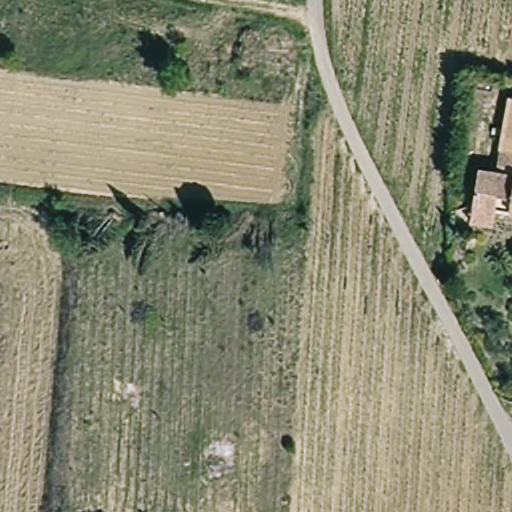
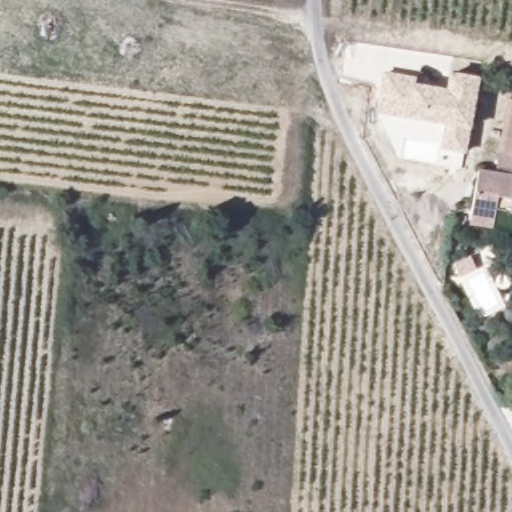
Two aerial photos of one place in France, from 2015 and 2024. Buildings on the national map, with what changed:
new [(439,150),(443,126),(401,119),(377,113),(384,72),(416,78),(415,83),(445,89),(448,72),(478,78),(470,129),(465,156),(439,150)]
unchanged [(471,204),(478,168),(492,169),(505,99),(512,100),(512,208),(495,204),(494,210),(491,224),(467,219),(471,204)]

